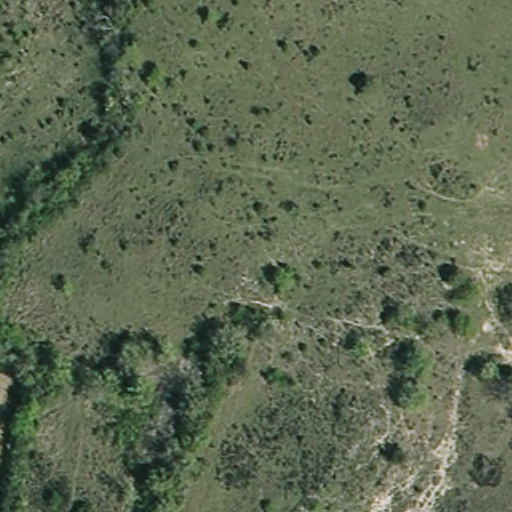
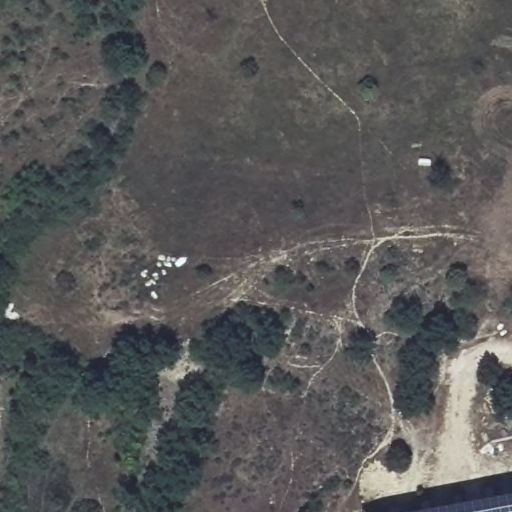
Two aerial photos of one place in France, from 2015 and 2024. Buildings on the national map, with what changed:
new [(512,489),(512,512),(390,512),(512,489)]

